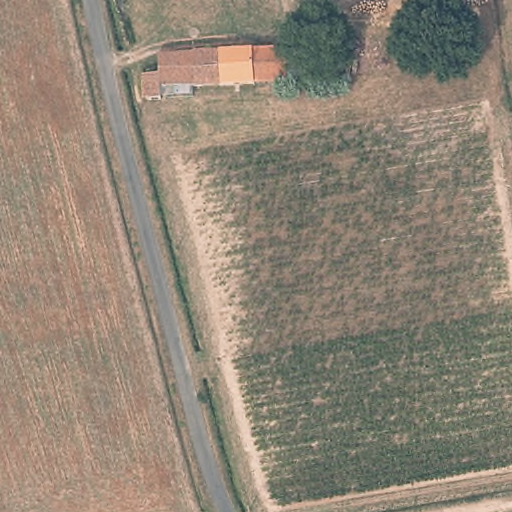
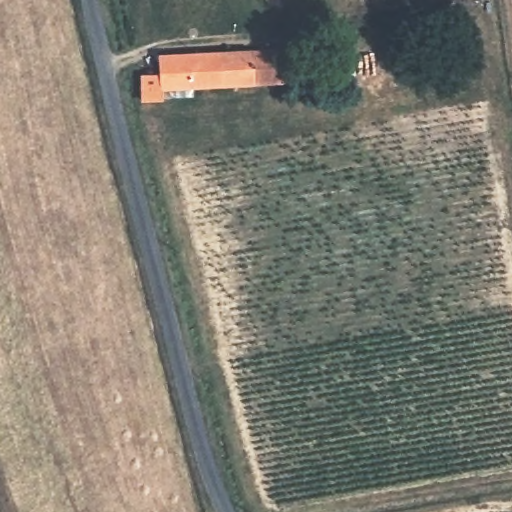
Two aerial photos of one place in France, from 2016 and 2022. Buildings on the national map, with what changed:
unchanged [(291,81),(283,81),(259,83),(256,50),(289,48),(291,81)]
unchanged [(162,74),(161,54),(197,53),(225,51),(256,50),(259,83),(226,84),(198,86),(165,88),(165,98),(147,99),(146,75),(162,74)]

